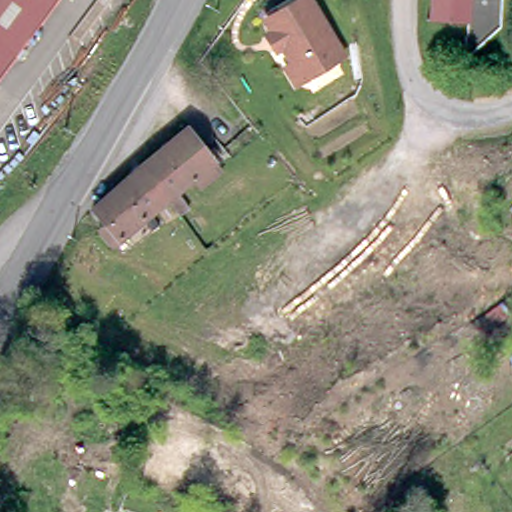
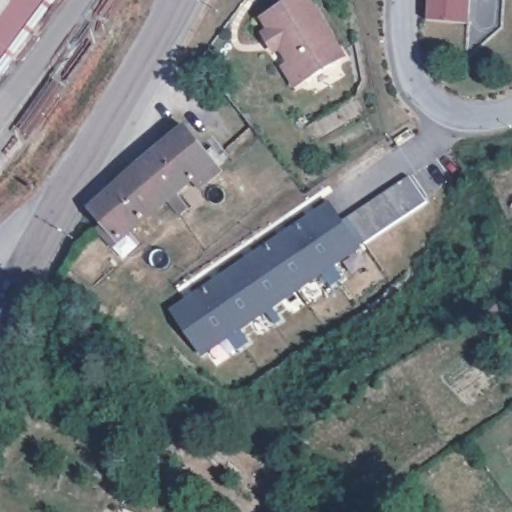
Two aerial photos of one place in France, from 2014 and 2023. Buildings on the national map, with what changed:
unchanged [(0,43),(0,0),(43,0),(9,49),(0,43)]
unchanged [(332,33),(344,51),(297,81),(286,63),(292,59),(282,43),(276,47),(268,35),(265,31),(272,26),(269,22),(269,13),(289,0),(312,0),(317,8),(332,32),(332,33)]
unchanged [(462,23),(426,19),(427,0),(464,0),(462,23)]
unchanged [(9,49),(0,61),(0,43),(9,49)]
unchanged [(93,202),(135,162),(187,120),(215,155),(221,163),(199,181),(191,172),(165,191),(120,233),(114,239),(101,223),(107,218),(93,202)]
new [(361,246),(344,220),(409,175),(426,201),(361,246)]
new [(203,354),(170,309),(329,201),(344,220),(361,246),(203,354)]

